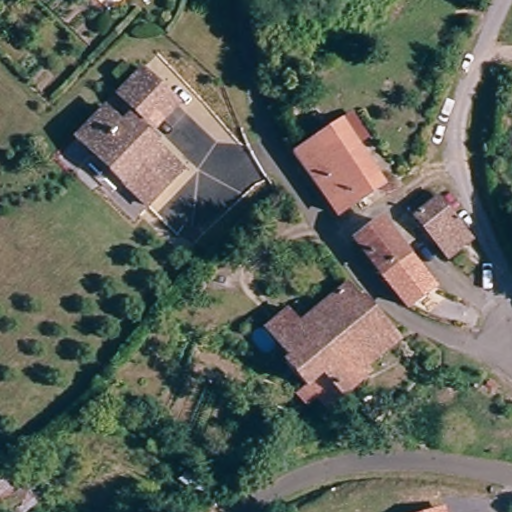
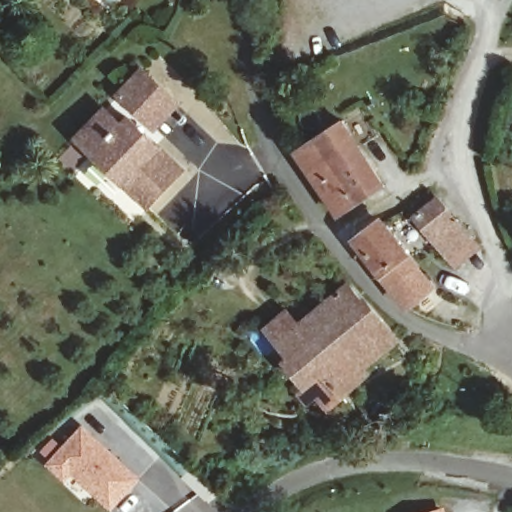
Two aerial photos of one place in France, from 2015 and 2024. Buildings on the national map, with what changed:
unchanged [(159,131),(150,123),(124,98),(148,75),(174,99),(183,108),(159,131)]
unchanged [(127,131),(134,123),(187,175),(152,211),(115,176),(81,143),(85,139),(109,114),(127,131)]
unchanged [(339,123),(382,186),(337,216),(294,154),(293,153),(339,123)]
unchanged [(474,235),(451,252),(418,212),(443,195),(474,235)]
unchanged [(361,237),(385,217),(411,251),(385,270),(361,237)]
unchanged [(385,270),(411,251),(437,284),(411,304),(385,270)]
unchanged [(364,296),(296,354),(269,321),(290,304),(304,320),(352,281),(364,296)]
unchanged [(296,354),(364,296),(394,331),(400,338),(369,363),(374,368),(327,411),(316,400),(303,390),(312,383),(290,358),(296,354)]
new [(53,436),(62,444),(83,421),(142,478),(111,511),(72,476),(66,483),(45,463),(49,458),(39,449),(53,436)]
unchanged [(444,505),(446,512),(424,512),(444,505)]

